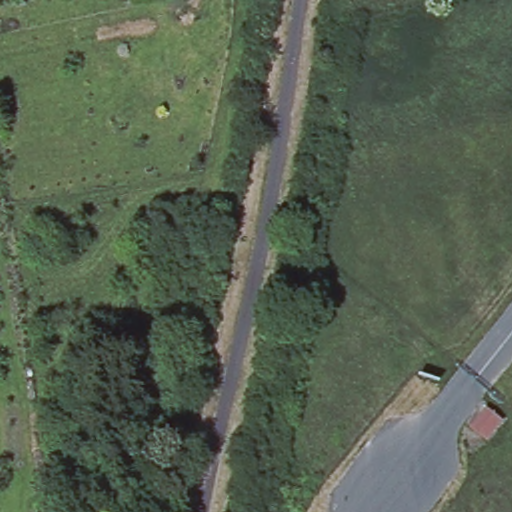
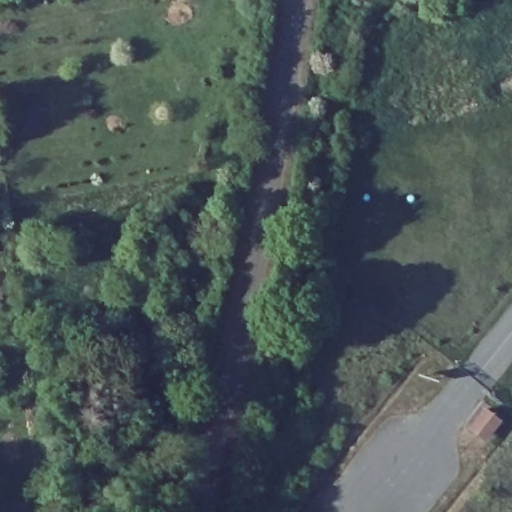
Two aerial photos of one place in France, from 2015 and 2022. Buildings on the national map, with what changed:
[]

